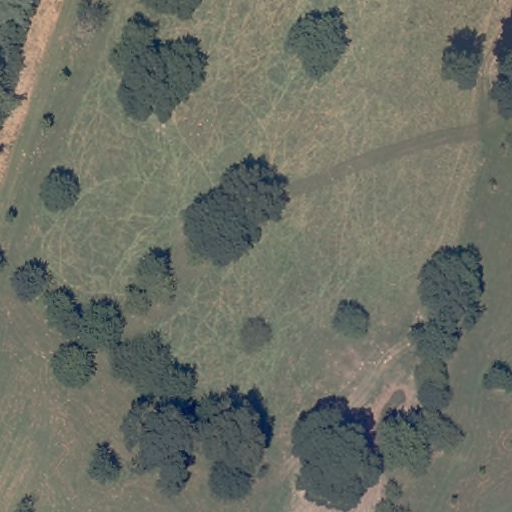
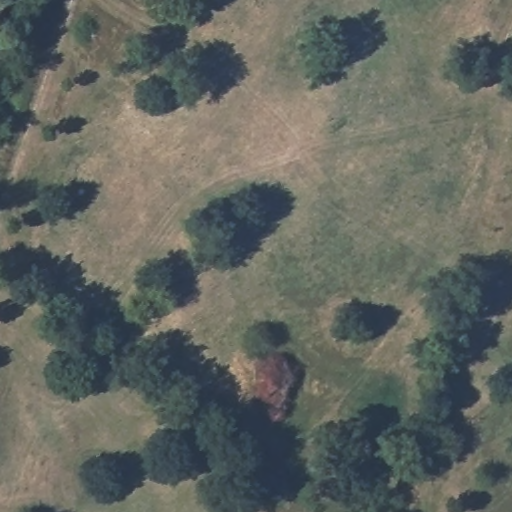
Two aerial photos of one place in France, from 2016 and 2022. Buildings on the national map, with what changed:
[]

